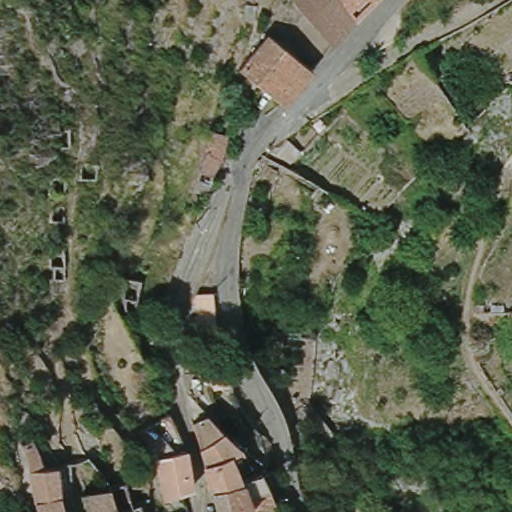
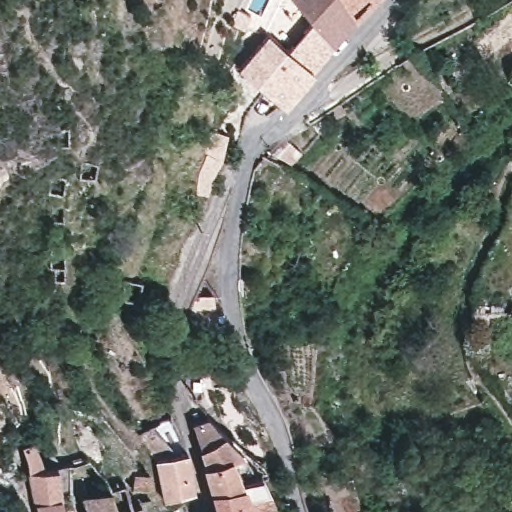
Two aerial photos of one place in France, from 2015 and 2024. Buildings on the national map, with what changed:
unchanged [(290,0),(345,0),(360,20),(336,47),(290,0)]
unchanged [(345,0),(378,0),(360,20),(345,0)]
unchanged [(373,34),(392,21),(400,29),(382,43),(373,34)]
unchanged [(284,104),(263,88),(236,66),(264,32),(311,71),(284,104)]
unchanged [(207,133),(227,139),(212,179),(207,197),(195,194),(200,172),(207,133)]
unchanged [(228,512),(219,512),(212,487),(205,462),(208,461),(200,441),(194,424),(215,415),(227,429),(240,444),(255,472),(264,502),(245,507),(228,512)]
unchanged [(167,503),(164,488),(155,462),(147,450),(137,431),(151,422),(174,452),(187,446),(188,452),(193,486),(180,495),(167,503)]
unchanged [(35,507),(29,470),(17,448),(30,441),(45,468),(55,467),(65,499),(68,512),(42,512),(40,507),(35,507)]
unchanged [(112,490),(118,506),(120,512),(85,512),(84,506),(82,498),(112,490)]
unchanged [(245,512),(228,512),(245,507),(245,512)]
unchanged [(25,512),(19,512),(25,510),(25,512)]

